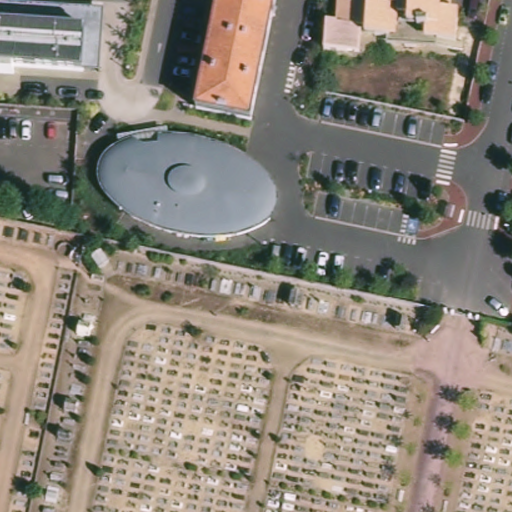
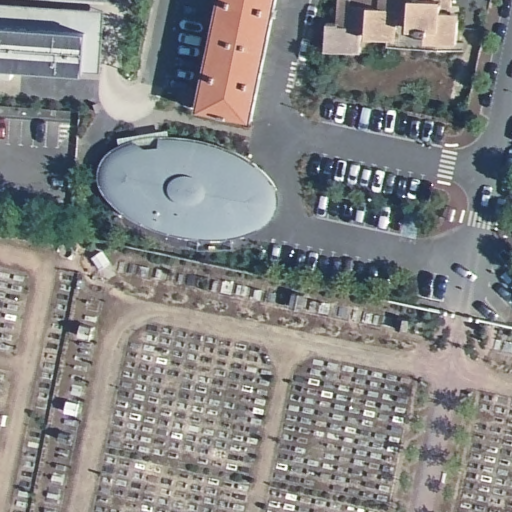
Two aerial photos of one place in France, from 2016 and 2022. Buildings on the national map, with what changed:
unchanged [(273,0),(247,121),(197,110),(220,0),(273,0)]
unchanged [(457,12),(456,36),(424,34),(424,39),(397,37),(398,32),(360,30),(359,49),(324,47),(326,19),(336,20),(337,0),(450,0),(449,12),(457,12)]
unchanged [(85,12),(84,34),(0,27),(0,5),(85,12)]
unchanged [(84,34),(81,72),(0,65),(0,27),(84,34)]
unchanged [(214,144),(224,147),(234,152),(244,157),(248,160),(253,164),(264,172),(271,180),(275,185),(272,207),(268,222),(258,227),(250,231),(243,234),(229,237),(214,239),(200,239),(178,235),(167,233),(149,227),(141,225),(129,217),(116,210),(106,199),(103,194),(99,184),(96,173),(97,167),(103,159),(116,147),(121,145),(129,142),(145,139),(157,137),(170,137),(196,140),(214,144)]

